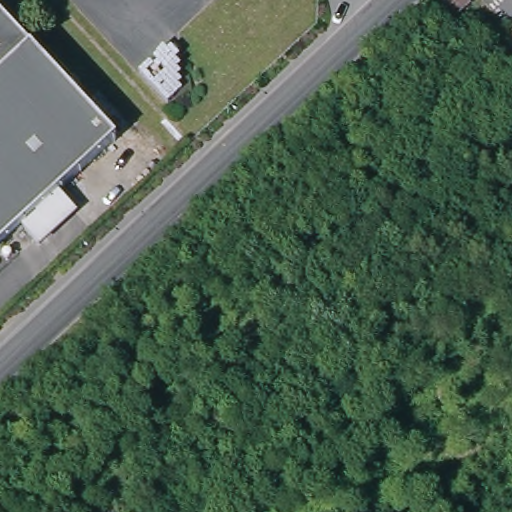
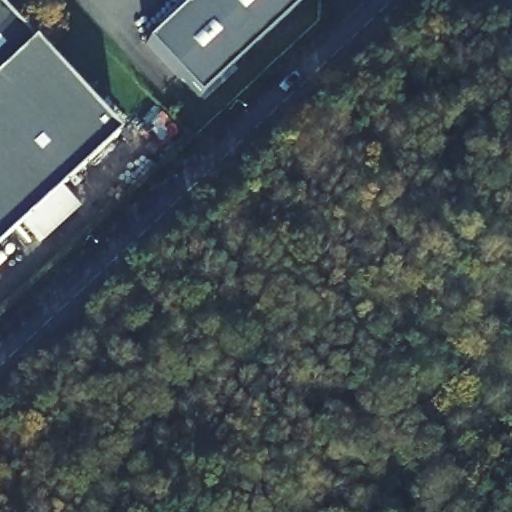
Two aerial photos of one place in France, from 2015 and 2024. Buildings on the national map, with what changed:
new [(318,0),(320,1),(208,111),(143,46),(191,0),(318,0)]
new [(460,13),(446,0),(471,0),(472,1),(460,13)]
unchanged [(115,140),(0,246),(0,15),(115,140)]

